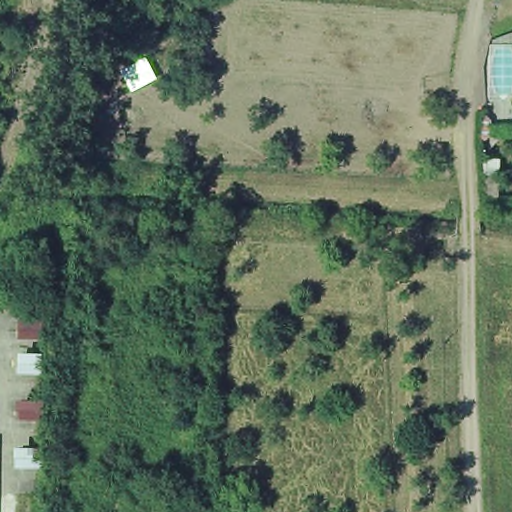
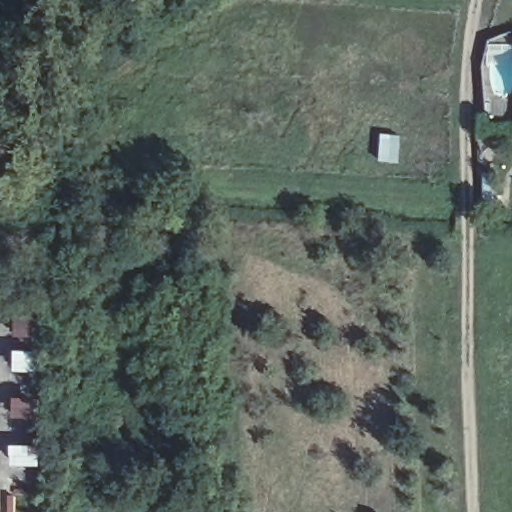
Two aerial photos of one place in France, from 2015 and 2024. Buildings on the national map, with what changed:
unchanged [(487,49),(512,41),(512,101),(506,103),(506,117),(481,109),(481,86),(480,70),(487,49)]

